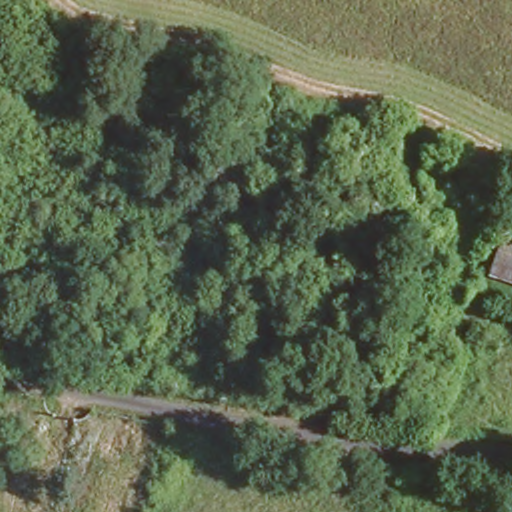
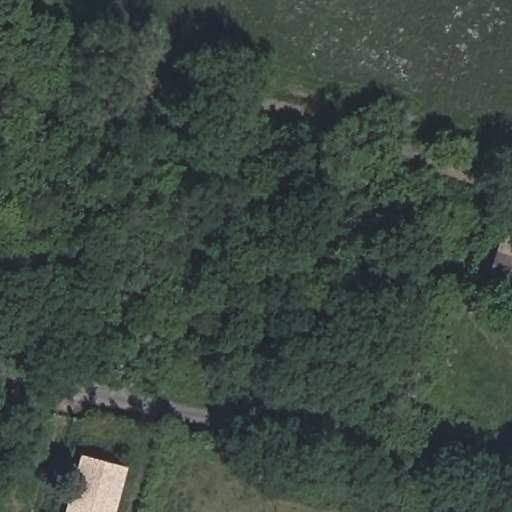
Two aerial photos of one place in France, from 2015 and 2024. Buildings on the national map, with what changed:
unchanged [(512,271),(494,264),(508,226),(512,227),(512,271)]
new [(81,455),(128,467),(116,512),(65,512),(81,455)]

